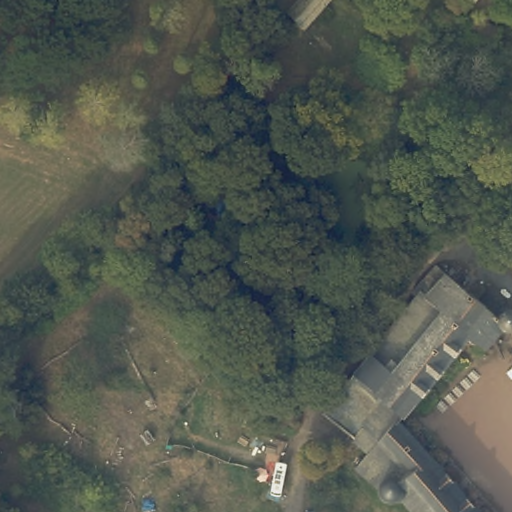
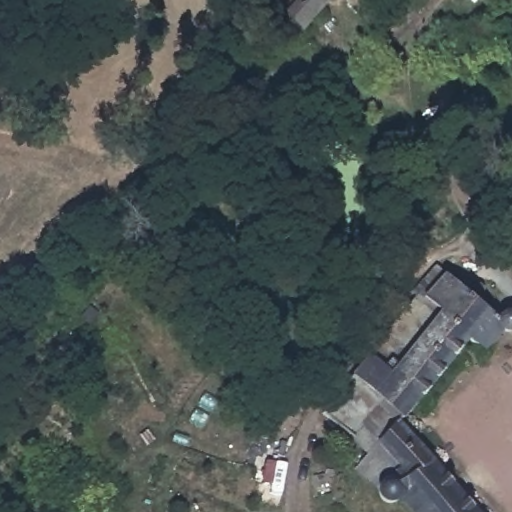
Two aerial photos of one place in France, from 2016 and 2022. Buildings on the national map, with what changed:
unchanged [(285,7),(290,0),(323,0),(302,24),(285,7)]
unchanged [(497,326),(481,346),(473,340),(470,341),(466,341),(463,339),(395,419),(475,512),(409,512),(396,497),(390,498),(385,498),(379,496),(375,492),(373,483),(349,464),(363,447),(342,429),(325,416),(318,409),(323,402),(319,398),(334,379),(338,383),(420,281),(426,284),(430,278),(426,274),(433,264),(465,290),(473,280),(477,280),(478,286),(471,294),(495,312),(497,309),(501,307),(505,307),(510,308),(512,311),(512,325),(512,326),(508,327),(504,328),(500,327),(497,326)]

